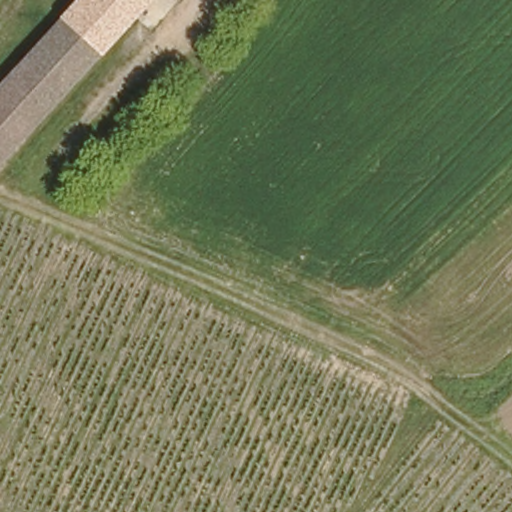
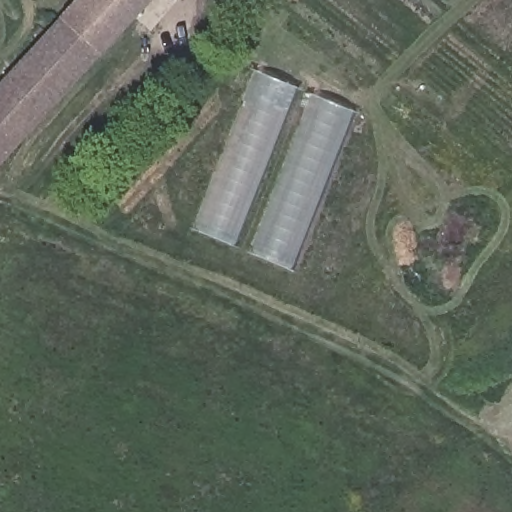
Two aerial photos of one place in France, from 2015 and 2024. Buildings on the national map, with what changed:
unchanged [(66,7),(72,0),(138,0),(0,146),(0,78),(66,7)]
new [(296,86),(235,245),(191,229),(252,70),(296,86)]
new [(307,94),(355,112),(292,270),(247,251),(307,94)]
demolished [(453,469),(421,499),(397,476),(428,445),(453,469)]

